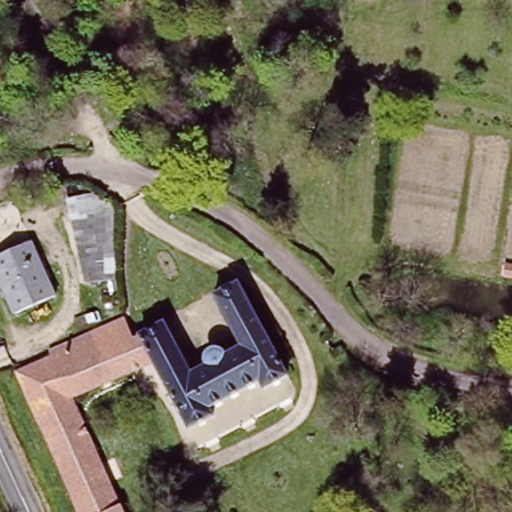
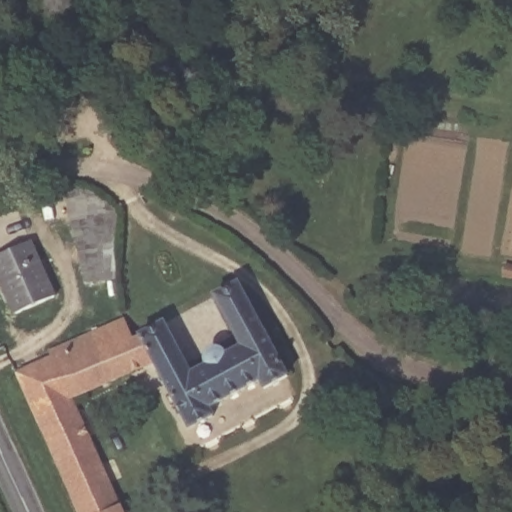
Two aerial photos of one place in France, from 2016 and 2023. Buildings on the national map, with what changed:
unchanged [(0,270),(0,256),(21,246),(36,239),(61,293),(53,297),(19,312),(0,270)]
unchanged [(167,321),(192,371),(209,362),(210,355),(214,352),(221,352),(227,355),(243,345),(215,293),(243,281),(290,374),(265,388),(262,380),(210,406),(213,417),(190,428),(176,401),(163,407),(157,392),(168,387),(157,362),(156,362),(142,332),(167,321)]
unchanged [(130,337),(142,332),(156,362),(72,400),(124,512),(81,512),(20,379),(55,364),(50,355),(122,322),(130,337)]

